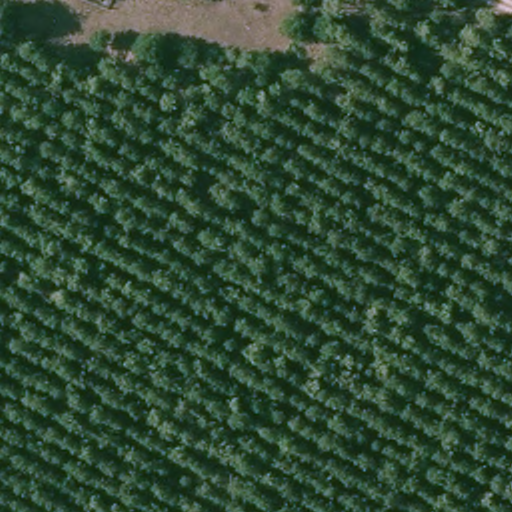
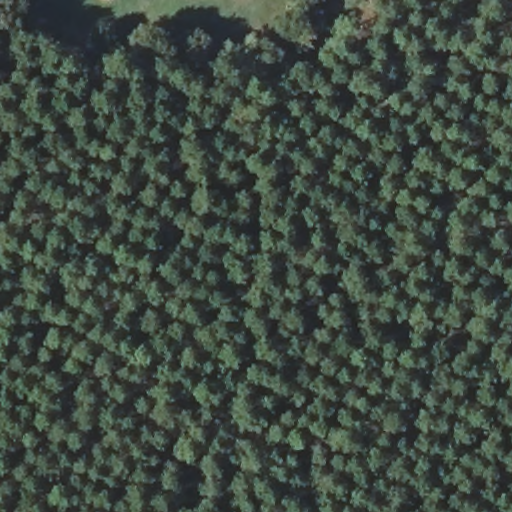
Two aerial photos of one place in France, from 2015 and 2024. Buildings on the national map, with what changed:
unchanged [(104,6),(91,0),(106,0),(104,6)]

